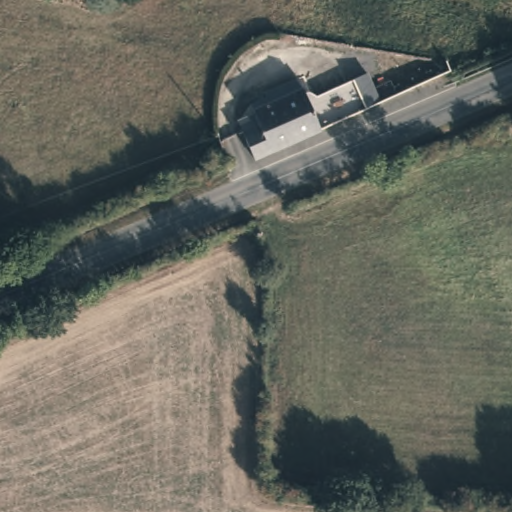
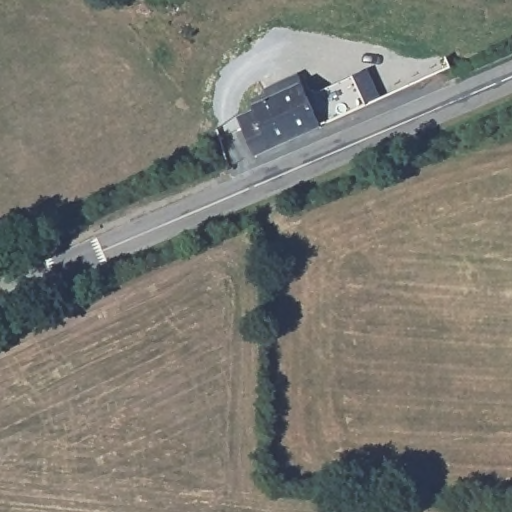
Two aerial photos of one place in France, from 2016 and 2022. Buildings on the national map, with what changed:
unchanged [(355,81),(373,71),(380,96),(367,107),(355,81)]
unchanged [(300,82),(318,123),(252,152),(240,125),(255,118),(250,104),(300,82)]

